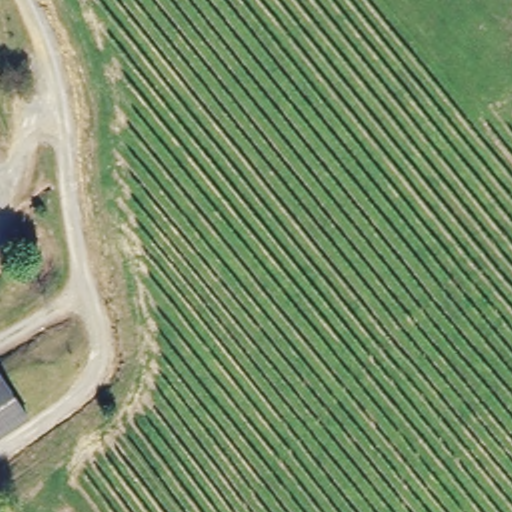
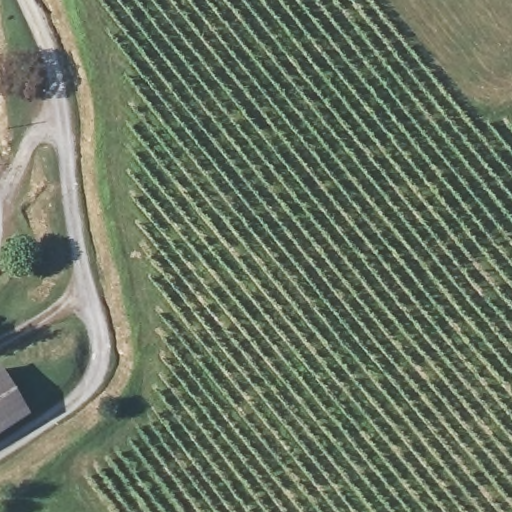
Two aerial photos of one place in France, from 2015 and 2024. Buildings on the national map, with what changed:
unchanged [(0,429),(0,381),(21,414),(0,429)]

